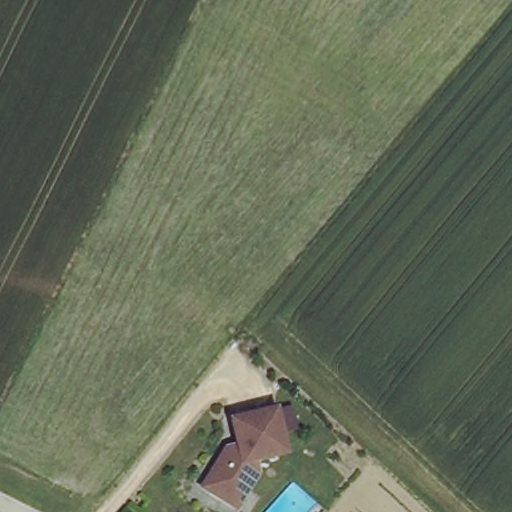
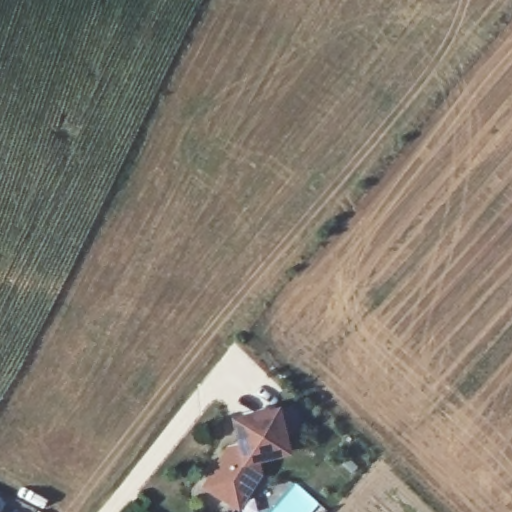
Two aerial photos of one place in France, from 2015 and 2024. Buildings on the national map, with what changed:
unchanged [(228,503),(201,486),(220,458),(226,448),(237,446),(231,420),(275,410),(283,453),(252,460),(255,474),(246,488),(235,506),(228,503)]

